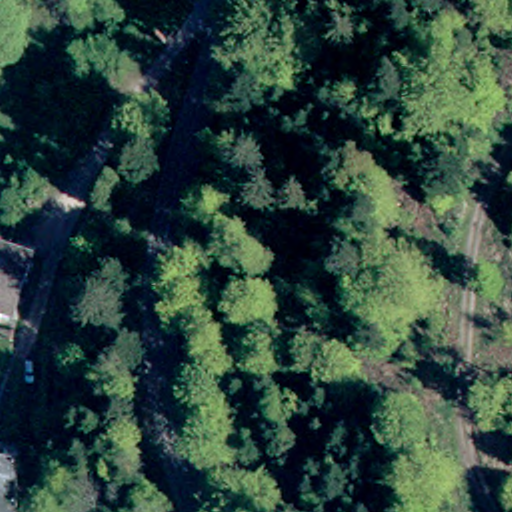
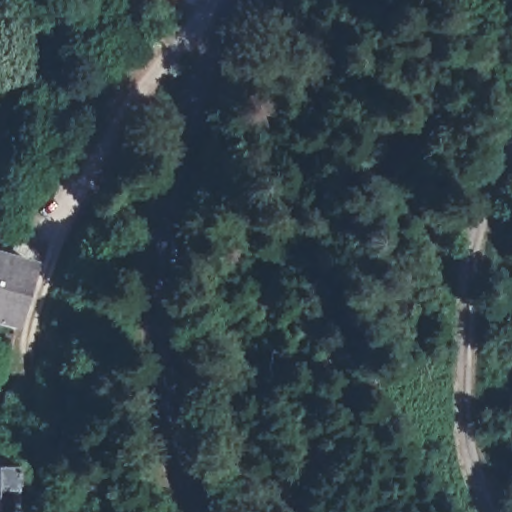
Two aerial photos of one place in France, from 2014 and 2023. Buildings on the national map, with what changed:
unchanged [(16,252),(0,308),(0,248),(16,252)]
unchanged [(17,454),(17,512),(0,512),(0,454),(17,454)]

